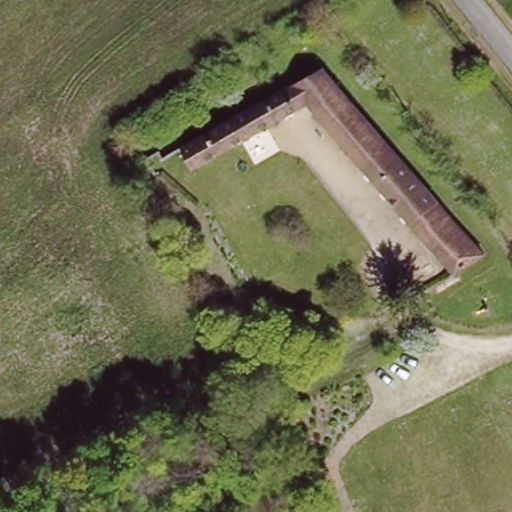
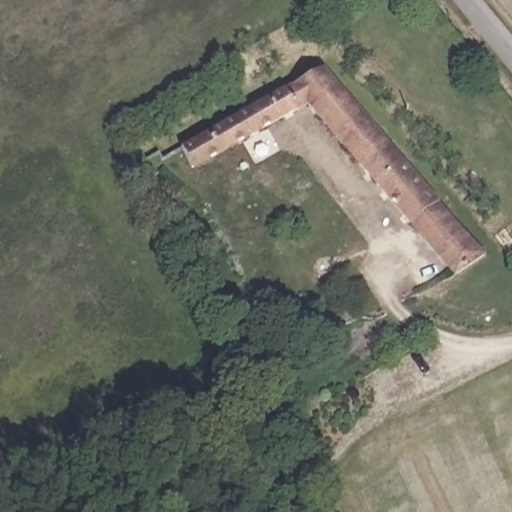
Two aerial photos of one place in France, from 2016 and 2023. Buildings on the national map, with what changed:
unchanged [(455,267),(305,100),(193,162),(181,145),(320,60),(491,245),(455,267)]

